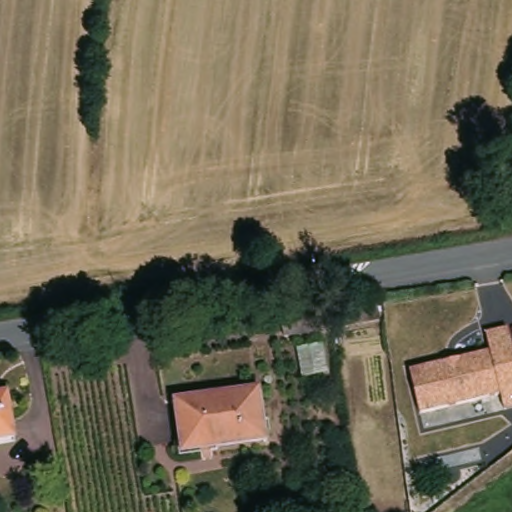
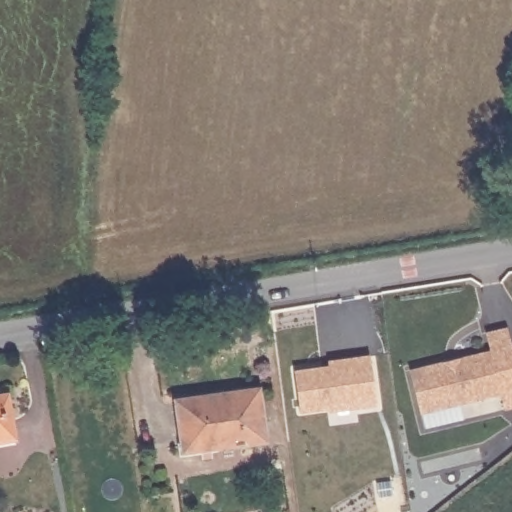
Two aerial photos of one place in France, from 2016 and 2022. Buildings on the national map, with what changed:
unchanged [(508,407),(504,392),(424,411),(413,368),(494,348),(489,330),(510,325),(512,331),(512,407),(508,407)]
new [(377,405),(328,413),(328,410),(300,413),(293,370),(328,366),(328,361),(369,356),(377,405)]
unchanged [(254,385),(261,435),(215,442),(214,437),(181,443),(175,398),(254,385)]
unchanged [(17,436),(0,439),(0,392),(11,390),(17,436)]

